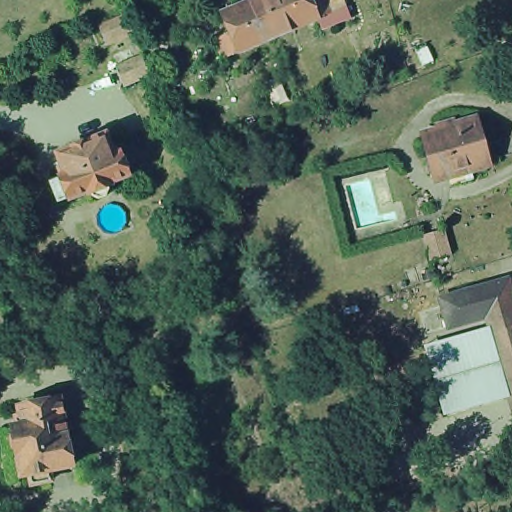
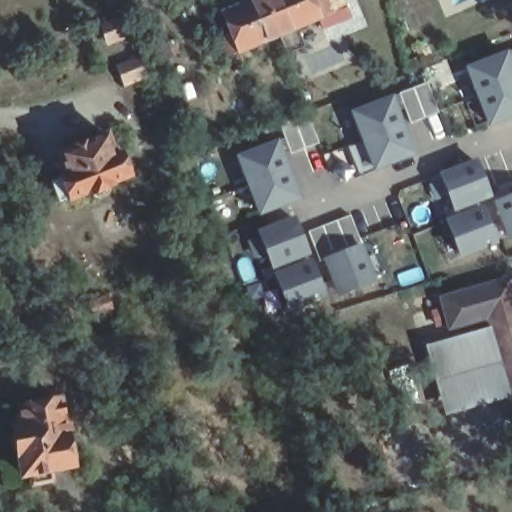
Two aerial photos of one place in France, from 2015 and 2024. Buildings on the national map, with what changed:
unchanged [(226,58),(218,38),(232,32),(224,13),(255,0),(266,0),(280,35),(226,58)]
unchanged [(345,0),(348,8),(322,19),(280,35),(266,0),(345,0)]
unchanged [(124,11),(132,28),(110,37),(102,20),(124,11)]
new [(464,67),(507,51),(512,62),(512,118),(487,128),(464,67)]
unchanged [(140,54),(149,73),(124,83),(115,65),(140,54)]
new [(410,124),(399,94),(427,83),(439,113),(410,124)]
new [(373,173),(350,112),(392,96),(417,155),(373,173)]
new [(290,155),(278,122),(307,113),(319,144),(290,155)]
demolished [(427,139),(440,136),(439,129),(456,124),(458,130),(477,125),(489,169),(440,182),(427,139)]
unchanged [(102,138),(110,158),(117,155),(125,178),(107,185),(108,188),(105,189),(106,193),(105,196),(92,200),(89,199),(87,196),(85,197),(83,195),(65,202),(64,200),(56,202),(50,186),(57,183),(56,180),(62,177),(54,156),(102,138)]
new [(258,217),(235,156),(279,140),(300,200),(258,217)]
demolished [(269,156),(272,170),(248,177),(245,163),(269,156)]
new [(453,213),(438,173),(477,159),(492,198),(453,213)]
new [(493,202),(512,195),(512,239),(507,241),(493,202)]
new [(498,244),(460,259),(445,219),(482,205),(498,244)]
new [(309,232),(350,216),(362,244),(377,283),(337,297),(322,260),(309,232)]
new [(272,270),(257,231),(295,217),(311,256),(272,270)]
new [(326,298),(289,313),(272,273),(312,259),(326,298)]
unchanged [(447,320),(440,293),(507,275),(512,294),(512,304),(486,311),(485,310),(447,320)]
unchanged [(512,405),(509,395),(491,327),(486,311),(512,304),(512,405)]
new [(445,414),(426,344),(491,327),(509,395),(445,414)]
unchanged [(60,393),(74,460),(50,464),(52,474),(34,477),(32,467),(24,469),(20,444),(14,440),(12,430),(16,426),(15,421),(25,419),(22,400),(60,393)]

